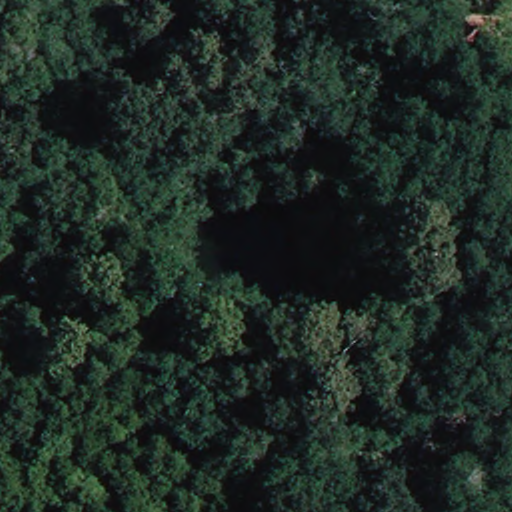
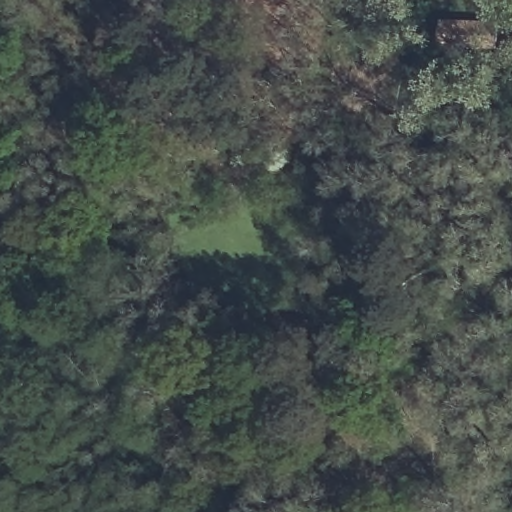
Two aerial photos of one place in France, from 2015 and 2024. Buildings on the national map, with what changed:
unchanged [(480,50),(438,42),(444,14),(484,20),(480,50)]

